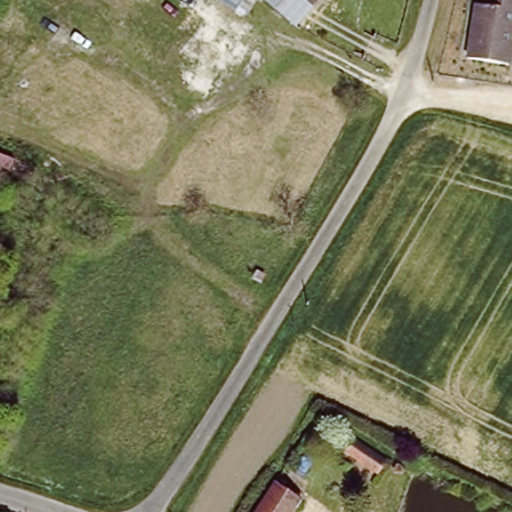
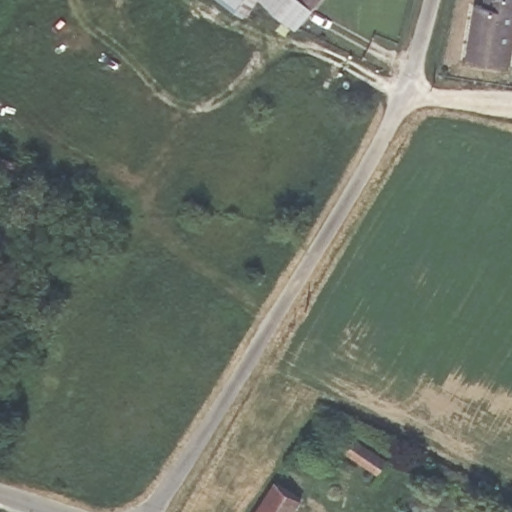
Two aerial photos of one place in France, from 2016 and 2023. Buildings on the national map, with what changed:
unchanged [(224,0),(254,0),(244,14),(224,0)]
unchanged [(262,0),(314,0),(293,25),(262,0)]
unchanged [(485,9),(487,0),(512,0),(512,36),(505,68),(465,59),(476,7),(485,9)]
unchanged [(359,444),(391,465),(385,475),(353,455),(359,444)]
unchanged [(265,505),(253,496),(264,479),(277,487),(302,504),(296,512),(260,512),(265,505)]

